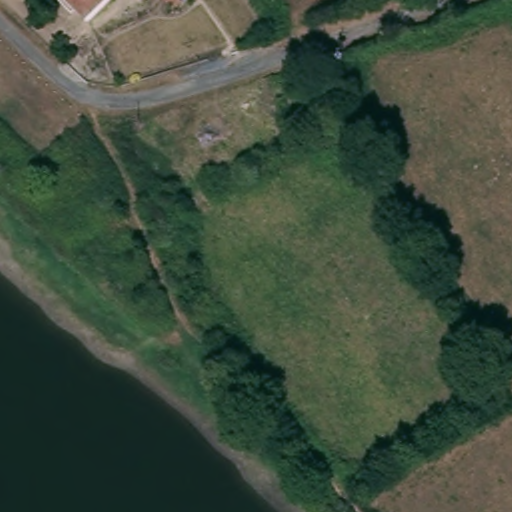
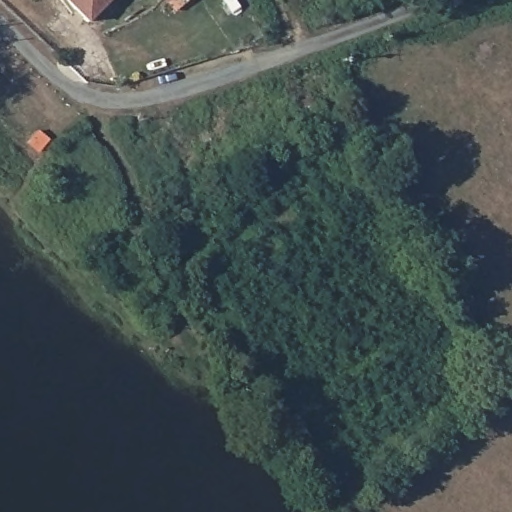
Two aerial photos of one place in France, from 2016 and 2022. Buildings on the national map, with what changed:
unchanged [(87,19),(68,0),(109,0),(87,19)]

